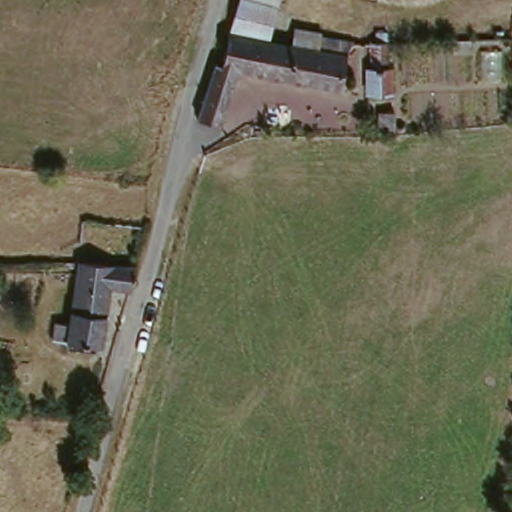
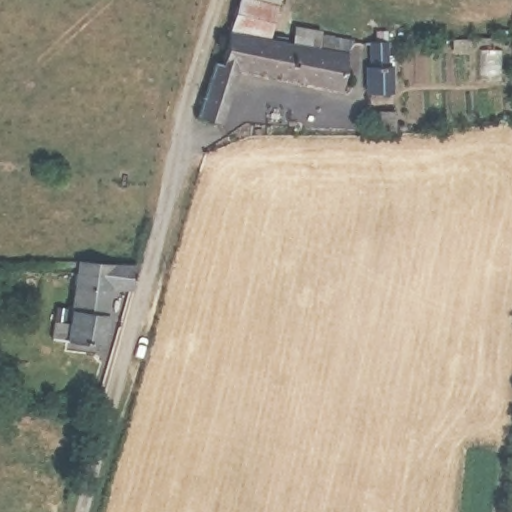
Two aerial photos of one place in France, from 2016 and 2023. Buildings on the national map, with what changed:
unchanged [(279,9),(243,1),(243,0),(281,0),(279,9)]
unchanged [(269,47),(230,40),(243,1),(279,9),(269,47)]
unchanged [(300,53),(305,38),(358,45),(350,60),(343,97),(242,81),(225,133),(200,128),(217,68),(226,71),(230,40),(269,47),(300,53)]
unchanged [(367,86),(373,85),(371,65),(393,61),(398,106),(370,111),(367,86)]
unchanged [(381,132),(395,128),(394,146),(381,147),(381,132)]
unchanged [(111,293),(103,350),(65,347),(77,263),(135,271),(131,296),(111,293)]

